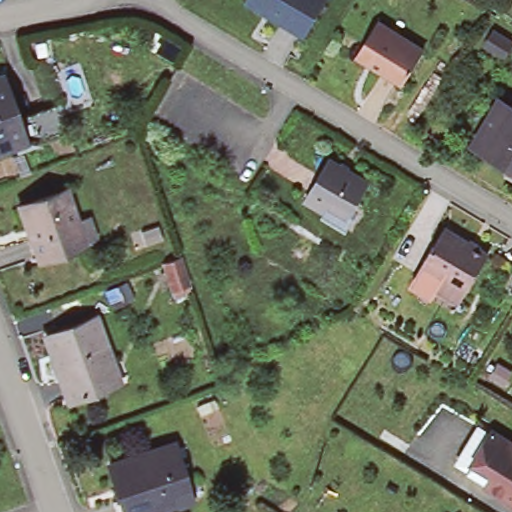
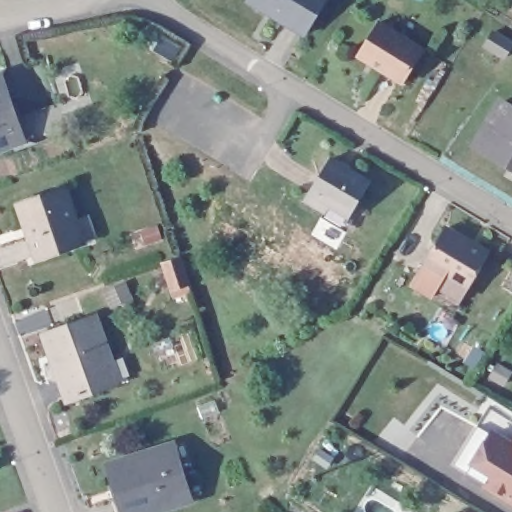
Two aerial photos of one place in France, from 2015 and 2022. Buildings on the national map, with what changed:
unchanged [(309,30),(283,15),(256,0),(327,0),(309,30)]
unchanged [(381,58),(364,47),(383,18),(428,47),(407,79),(379,61),(381,58)]
unchanged [(512,39),(512,50),(509,56),(489,45),(498,30),(512,39)]
unchanged [(1,78),(16,122),(24,144),(22,145),(0,153),(0,78),(1,78)]
unchanged [(58,108),(67,134),(23,149),(22,145),(24,144),(16,122),(58,108)]
unchanged [(472,150),(494,109),(512,119),(512,174),(504,169),(472,150)]
unchanged [(327,211),(308,199),(332,158),(373,181),(351,215),(346,223),(327,211)]
unchanged [(79,242),(40,254),(33,232),(37,231),(27,201),(68,187),(79,219),(85,240),(79,242)]
unchanged [(446,228),(488,255),(467,289),(459,301),(417,275),(424,262),(446,228)]
unchanged [(183,255),(194,289),(178,294),(166,260),(183,255)]
unchanged [(109,383),(69,396),(48,330),(98,314),(113,359),(119,380),(109,383)]
unchanged [(463,458),(484,424),(512,441),(512,495),(474,470),(476,466),(463,458)]
unchanged [(189,499),(142,512),(123,512),(108,465),(174,447),(189,499)]

